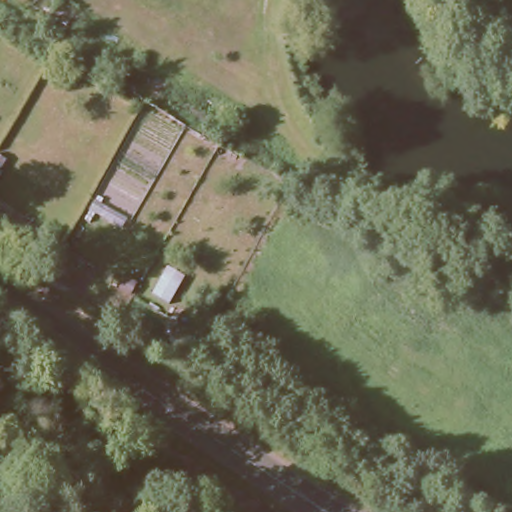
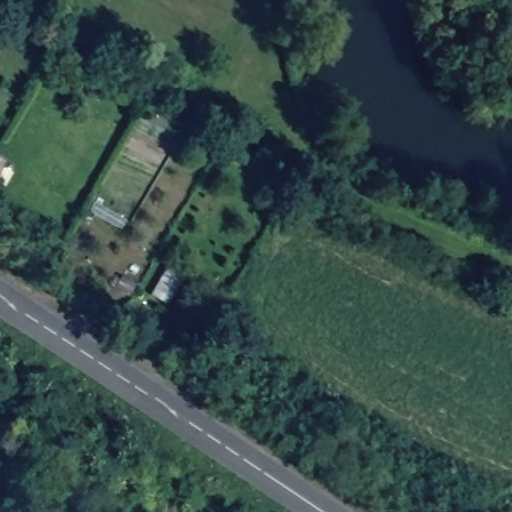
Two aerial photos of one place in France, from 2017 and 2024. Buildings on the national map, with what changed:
unchanged [(284,446),(290,436),(301,443),(295,453),(284,446)]

